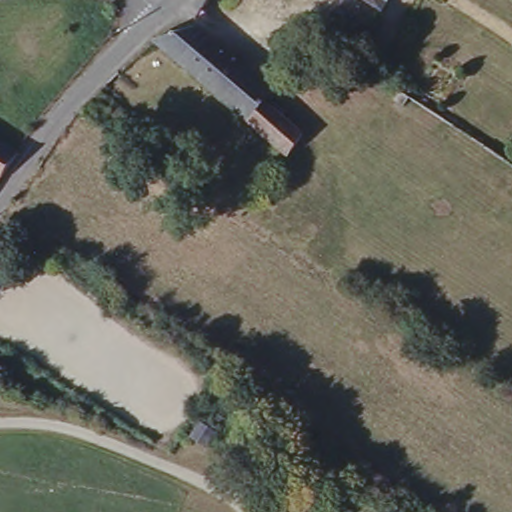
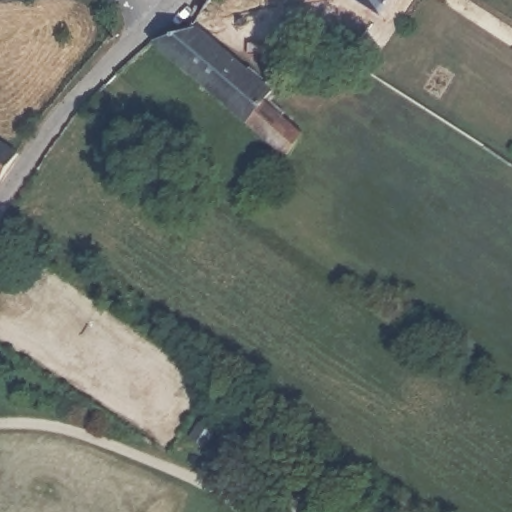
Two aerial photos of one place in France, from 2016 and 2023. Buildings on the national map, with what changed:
unchanged [(383,13),(365,0),(392,0),(383,13)]
unchanged [(196,26),(272,91),(263,102),(305,137),(287,161),(158,47),(196,26)]
unchanged [(0,177),(0,143),(16,153),(0,177)]

